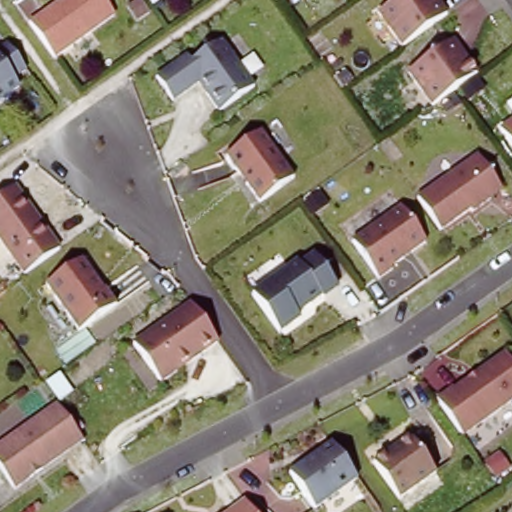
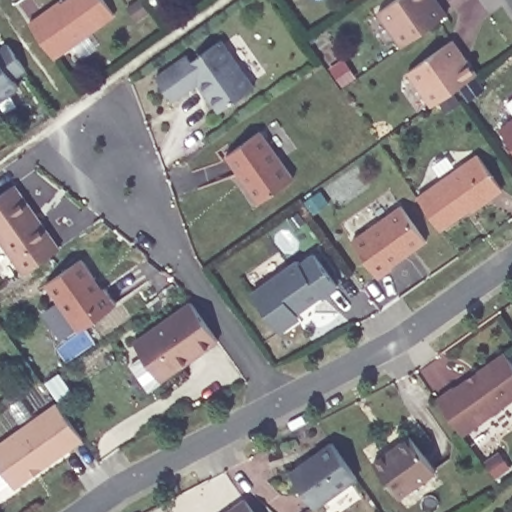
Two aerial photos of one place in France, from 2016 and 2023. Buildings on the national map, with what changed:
unchanged [(58,3),(62,0),(100,0),(110,14),(50,58),(25,22),(55,1),(58,3)]
unchanged [(403,45),(379,11),(395,0),(438,0),(448,13),(403,45)]
unchanged [(464,53),(468,59),(478,73),(454,89),(433,104),(409,71),(454,39),(464,53)]
unchanged [(4,44),(22,69),(9,78),(14,86),(0,96),(0,46),(4,44)]
unchanged [(183,59),(187,65),(217,45),(249,91),(214,116),(201,97),(203,95),(195,85),(167,105),(151,81),(183,59)]
unchanged [(501,129),(512,120),(512,144),(501,129)]
unchanged [(261,136),(295,182),(261,207),(227,160),(261,136)]
unchanged [(473,154),(498,189),(468,210),(466,208),(437,228),(414,196),(473,154)]
unchanged [(0,245),(0,201),(15,191),(60,254),(25,280),(0,245)]
unchanged [(392,210),(417,244),(382,269),(384,271),(370,281),(343,245),(392,210)]
unchanged [(298,261),(302,264),(316,254),(339,286),(324,296),(322,294),(298,312),(301,316),(280,331),(254,293),(298,261)]
unchanged [(83,264),(94,281),(93,282),(102,295),(105,293),(117,309),(80,336),(47,290),(83,264)]
unchanged [(157,386),(129,348),(187,305),(214,344),(157,386)]
unchanged [(451,392),(501,357),(512,372),(512,401),(460,438),(434,403),(450,391),(451,392)]
unchanged [(17,481),(0,458),(0,440),(58,398),(83,433),(17,481)]
unchanged [(407,435),(433,471),(396,497),(371,461),(407,435)]
unchanged [(312,512),(287,477),(329,447),(354,482),(312,512)]
unchanged [(243,503),(249,512),(230,512),(243,503)]

